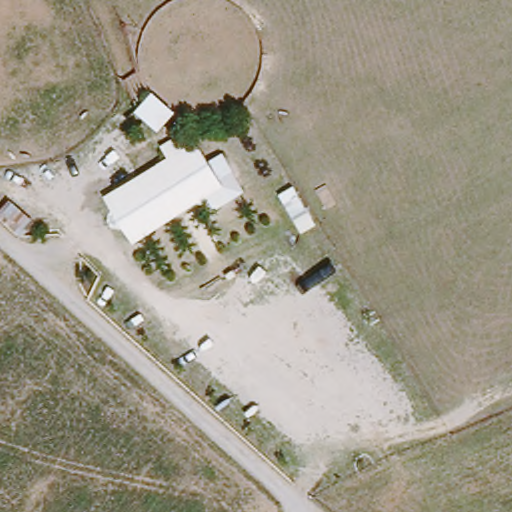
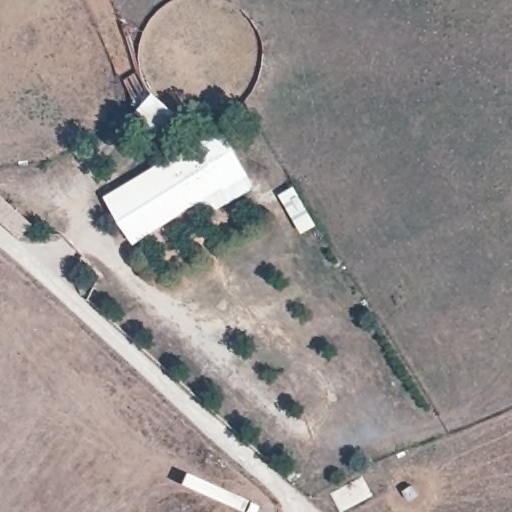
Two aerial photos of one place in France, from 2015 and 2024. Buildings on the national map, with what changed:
unchanged [(164,158),(157,147),(172,137),(180,149),(192,142),(205,161),(220,153),(242,192),(212,211),(205,199),(130,245),(100,197),(164,158)]

